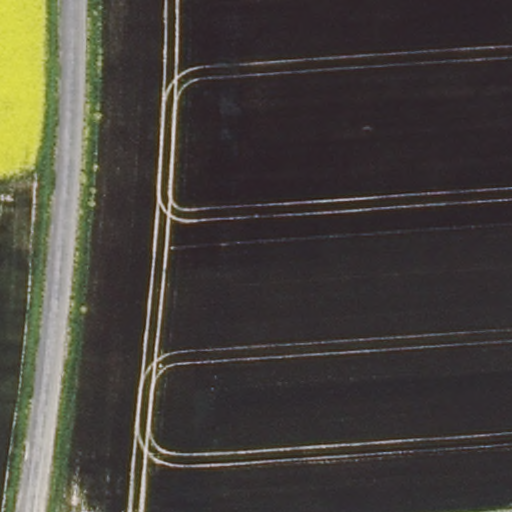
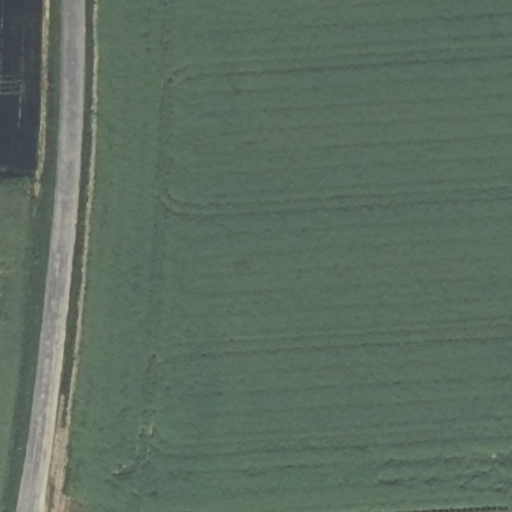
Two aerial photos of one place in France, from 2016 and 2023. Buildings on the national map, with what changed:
[]

